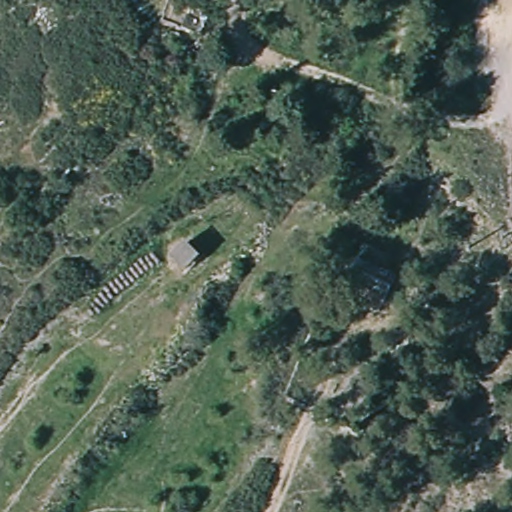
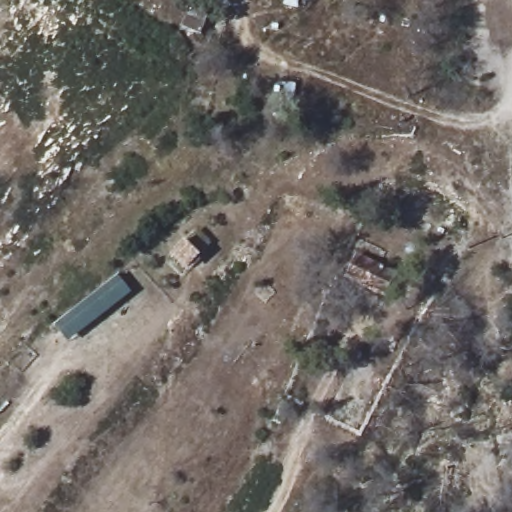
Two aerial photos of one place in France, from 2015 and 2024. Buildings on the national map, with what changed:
unchanged [(201,31),(181,25),(188,4),(208,10),(201,31)]
unchanged [(202,257),(190,269),(176,256),(190,244),(202,257)]
new [(70,343),(56,325),(118,277),(131,295),(70,343)]

